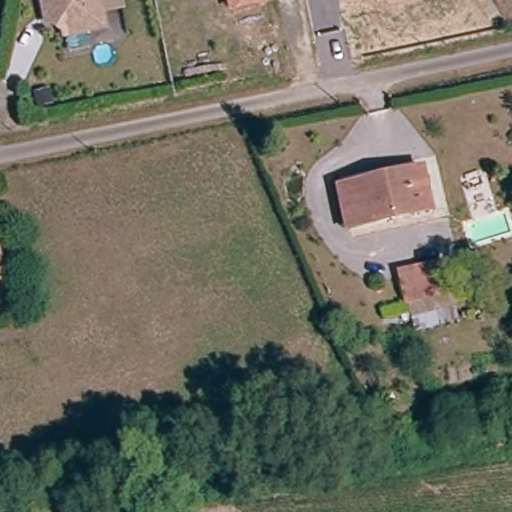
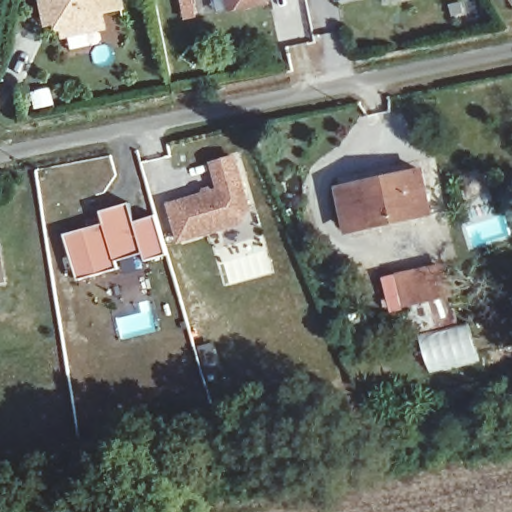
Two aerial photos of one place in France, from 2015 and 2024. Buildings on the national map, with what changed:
unchanged [(92,15),(95,34),(62,40),(57,30),(40,25),(38,7),(45,0),(113,0),(114,11),(92,15)]
unchanged [(229,14),(227,0),(272,0),(272,4),(229,14)]
new [(166,201),(215,187),(208,162),(239,154),(253,206),(244,225),(179,244),(166,201)]
unchanged [(437,221),(419,225),(417,217),(355,230),(347,183),(427,170),(437,221)]
new [(65,235),(106,224),(102,211),(131,205),(136,222),(156,217),(168,254),(147,260),(145,251),(116,260),(118,268),(78,280),(65,235)]
unchanged [(0,284),(0,258),(3,283),(0,284)]
unchanged [(445,272),(445,300),(401,300),(401,272),(445,272)]
new [(467,323),(478,360),(428,374),(419,334),(467,323)]

